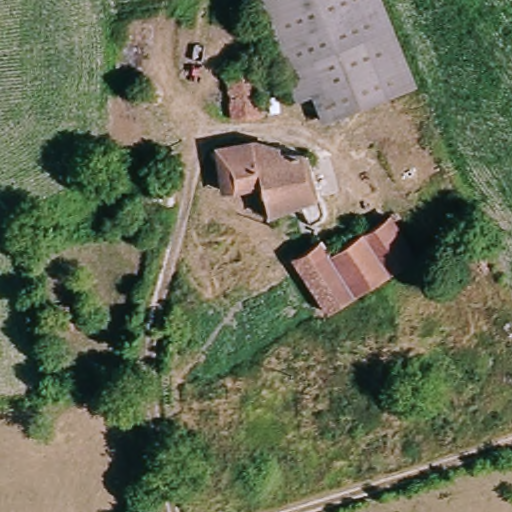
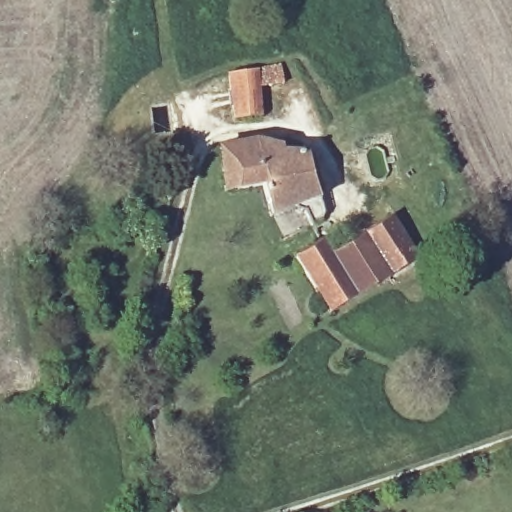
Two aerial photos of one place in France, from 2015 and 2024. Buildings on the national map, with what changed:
demolished [(320,100),(305,106),(277,43),(259,0),(377,0),(415,87),(331,124),(320,100)]
unchanged [(256,93),(265,129),(237,126),(228,78),(281,68),(284,86),(256,93)]
unchanged [(308,159),(320,215),(319,224),(303,226),(299,213),(291,213),(267,218),(262,187),(223,193),(216,152),(253,146),(266,148),(280,157),(308,159)]
unchanged [(420,262),(334,317),(298,259),(325,241),(335,255),(393,219),(420,262)]

